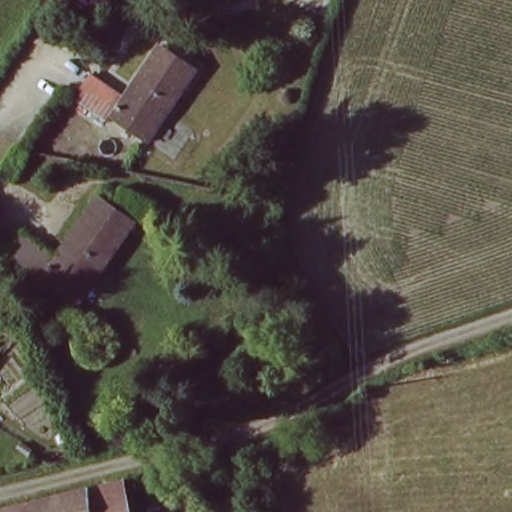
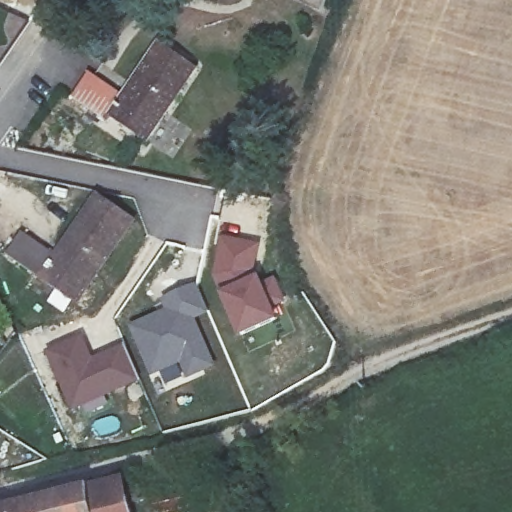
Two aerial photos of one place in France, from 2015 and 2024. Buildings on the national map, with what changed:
unchanged [(141,140),(114,121),(144,79),(166,46),(201,71),(162,125),(148,145),(141,140)]
unchanged [(125,97),(109,122),(77,100),(94,75),(125,97)]
unchanged [(74,297),(47,277),(106,194),(140,219),(95,280),(80,302),(74,297)]
unchanged [(59,253),(42,274),(11,251),(27,229),(59,253)]
new [(257,247),(253,268),(261,287),(274,282),(283,302),(270,309),(274,319),(243,332),(218,274),(225,241),(257,247)]
new [(169,311),(165,300),(198,287),(209,311),(192,320),(211,365),(189,375),(182,360),(153,372),(134,328),(169,311)]
new [(82,339),(92,362),(126,349),(139,380),(74,410),(49,353),(82,339)]
unchanged [(133,512),(114,512),(108,481),(126,477),(133,512)]
unchanged [(108,480),(108,481),(114,512),(0,512),(0,508),(84,488),(108,480)]

